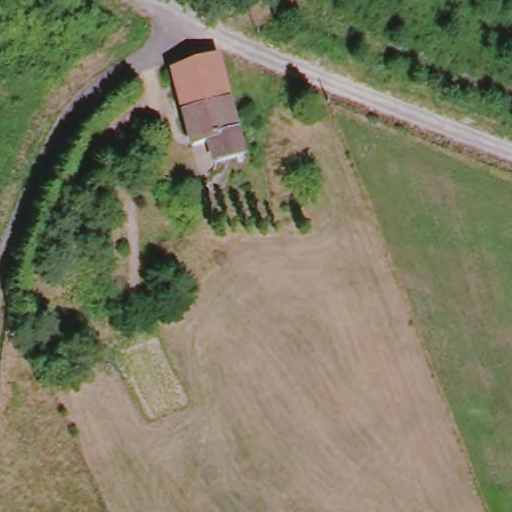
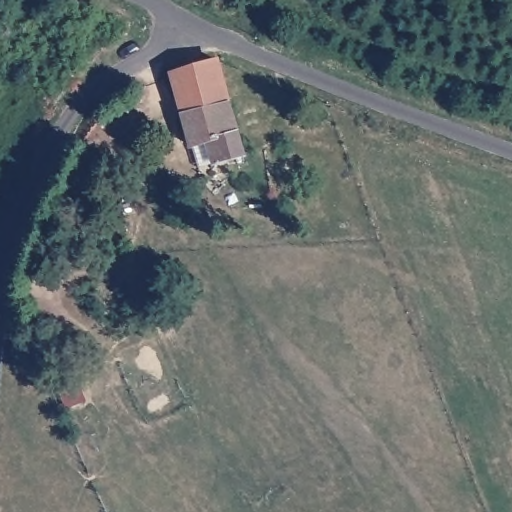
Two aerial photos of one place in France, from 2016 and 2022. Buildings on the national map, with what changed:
unchanged [(247,154),(219,161),(215,145),(195,148),(175,74),(221,61),(247,154)]

